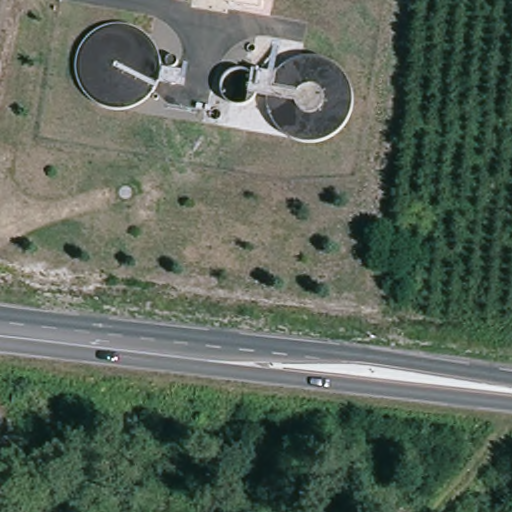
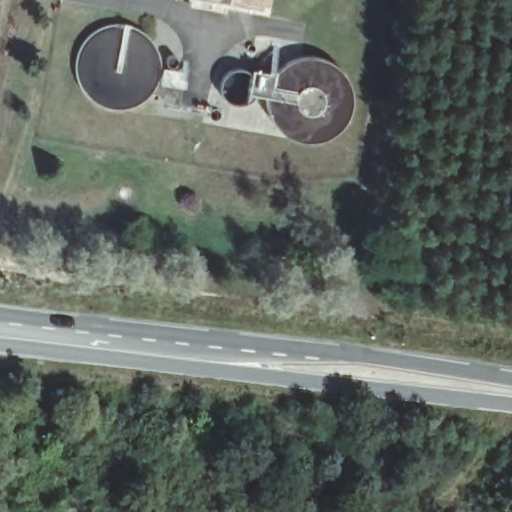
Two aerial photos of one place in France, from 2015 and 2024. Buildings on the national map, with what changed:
unchanged [(225,2),(218,0),(225,0),(225,2)]
unchanged [(259,9),(225,2),(225,0),(261,0),(259,9)]

